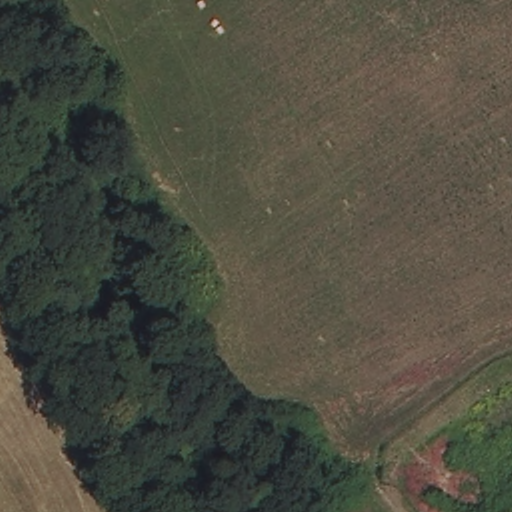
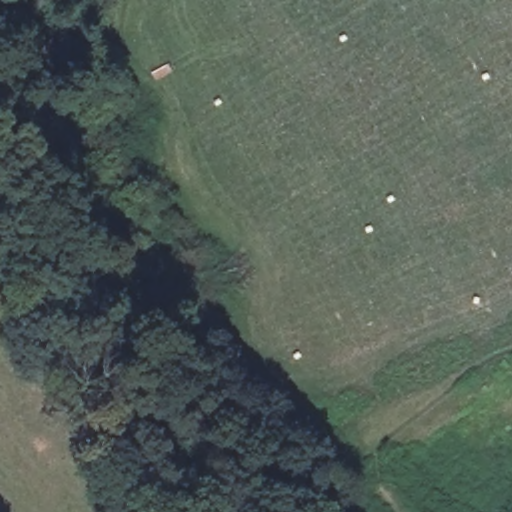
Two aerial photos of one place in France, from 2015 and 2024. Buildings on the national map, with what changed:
[]

